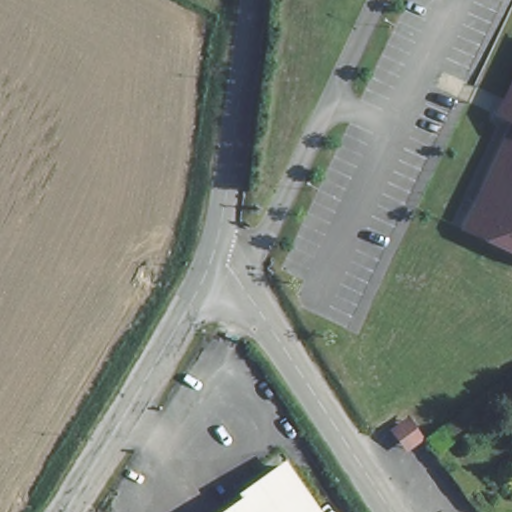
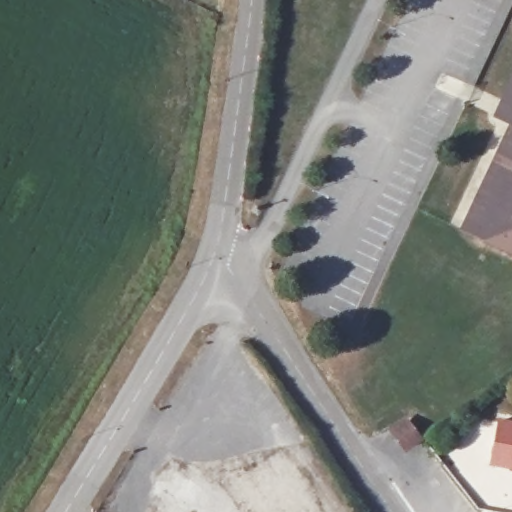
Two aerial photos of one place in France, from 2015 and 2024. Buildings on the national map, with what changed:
unchanged [(503,121),(486,114),(512,54),(512,256),(453,234),(503,121)]
new [(512,420),(512,471),(488,466),(497,418),(512,420)]
unchanged [(413,442),(404,448),(393,434),(402,428),(413,442)]
demolished [(243,497),(241,489),(288,459),(324,512),(221,512),(243,497)]

